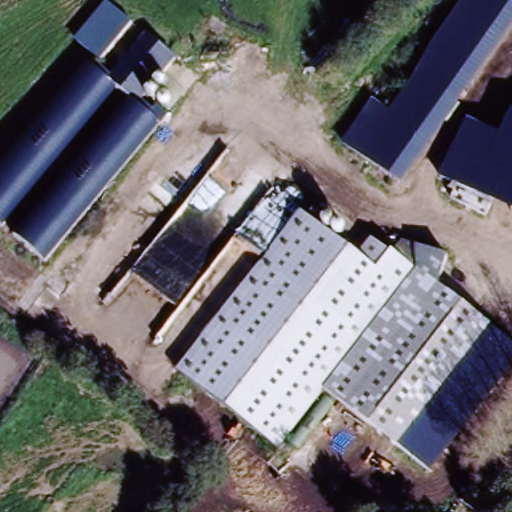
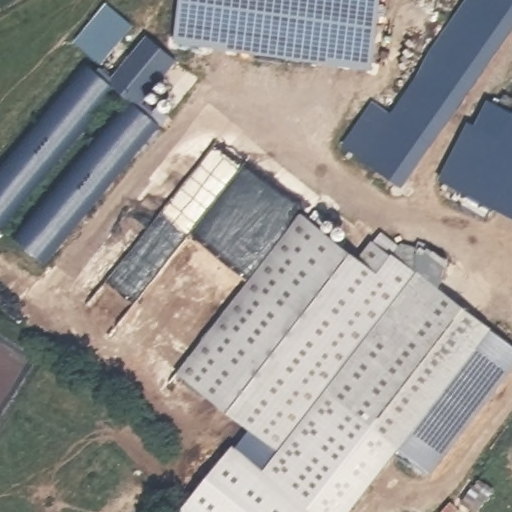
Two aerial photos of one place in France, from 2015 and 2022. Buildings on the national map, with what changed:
new [(183,0),(383,0),(374,69),(175,42),(183,0)]
unchanged [(370,100),(387,110),(463,0),(512,0),(512,23),(398,183),(339,140),(370,100)]
unchanged [(107,5),(135,27),(100,66),(74,44),(107,5)]
unchanged [(177,62),(137,106),(108,82),(148,36),(177,62)]
unchanged [(0,225),(0,163),(78,65),(107,89),(0,225)]
unchanged [(121,104),(150,125),(41,265),(11,240),(121,104)]
unchanged [(512,122),(512,220),(440,190),(464,134),(499,149),(512,122)]
unchanged [(381,265),(403,278),(412,258),(441,269),(430,295),(512,356),(512,359),(490,388),(499,395),(486,412),(476,405),(436,455),(335,380),(273,458),(165,378),(286,222),(368,281),(381,265)]
new [(335,380),(436,455),(426,470),(401,450),(352,512),(181,512),(180,510),(234,446),(237,449),(246,438),(273,458),(335,380)]

